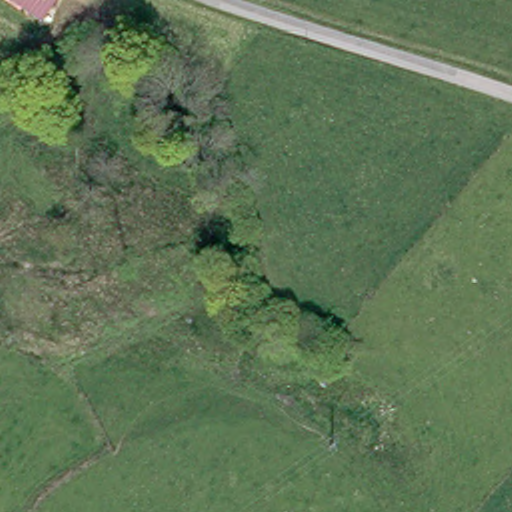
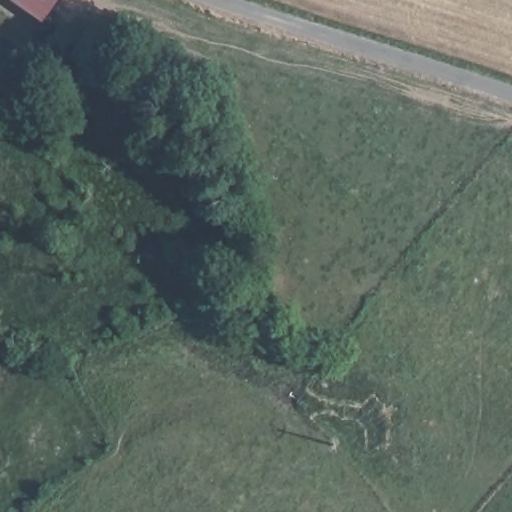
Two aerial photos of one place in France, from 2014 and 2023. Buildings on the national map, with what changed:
unchanged [(17,0),(56,0),(44,18),(17,0)]

